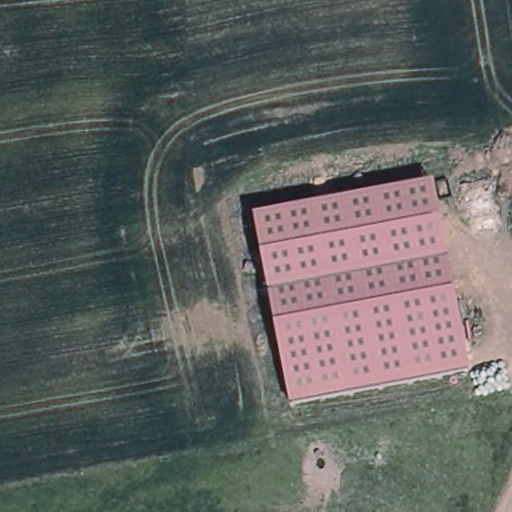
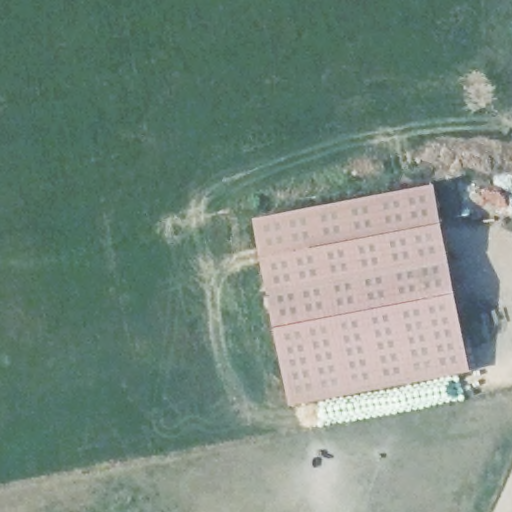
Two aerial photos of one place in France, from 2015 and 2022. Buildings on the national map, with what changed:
unchanged [(472,370),(293,404),(257,217),(437,183),(472,370)]

